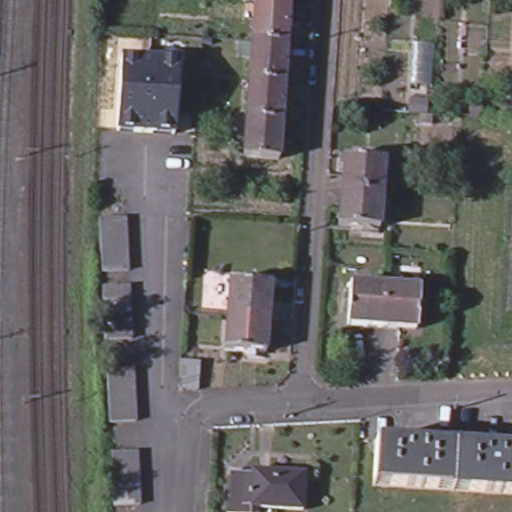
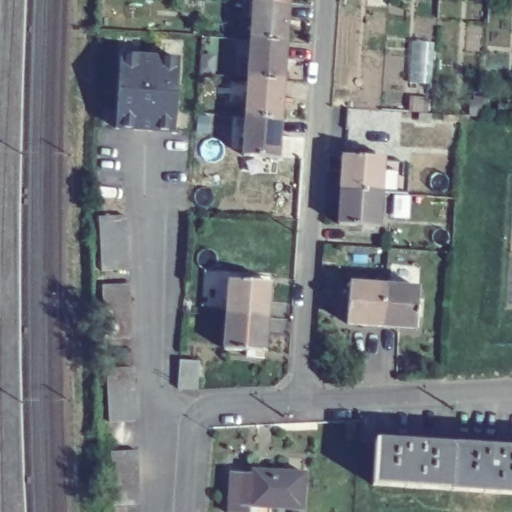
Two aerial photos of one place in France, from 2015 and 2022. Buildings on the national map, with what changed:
unchanged [(250,39),(252,0),(290,0),(290,3),(287,41),(250,39)]
unchanged [(250,39),(287,41),(283,81),(247,79),(250,39)]
unchanged [(177,60),(173,132),(115,130),(119,57),(177,60)]
unchanged [(241,157),(242,139),(232,139),(234,120),(244,120),(247,79),(283,81),(280,122),(277,160),(241,157)]
unchanged [(478,100),(477,116),(467,115),(468,100),(478,100)]
unchanged [(510,106),(510,118),(496,117),(497,105),(510,106)]
unchanged [(342,158),(382,160),(380,192),(340,190),(342,158)]
unchanged [(380,192),(377,229),(337,226),(340,190),(380,192)]
unchanged [(125,273),(99,275),(95,221),(122,220),(125,273)]
unchanged [(225,313),(227,280),(267,283),(264,315),(225,313)]
unchanged [(346,327),(348,286),(382,287),(380,328),(346,327)]
unchanged [(382,287),(417,290),(415,330),(380,328),(382,287)]
unchanged [(130,288),(133,342),(106,344),(103,290),(130,288)]
unchanged [(261,352),(222,350),(225,313),(264,315),(261,352)]
unchanged [(190,365),(187,394),(168,394),(171,365),(190,365)]
unchanged [(129,372),(132,426),(105,428),(102,374),(129,372)]
unchanged [(512,450),(512,496),(372,488),(375,442),(512,450)]
unchanged [(136,510),(117,512),(110,512),(108,453),(134,451),(136,510)]
unchanged [(225,481),(246,481),(247,475),(278,476),(299,477),(296,512),(286,512),(276,511),(244,510),(223,509),(225,481)]

